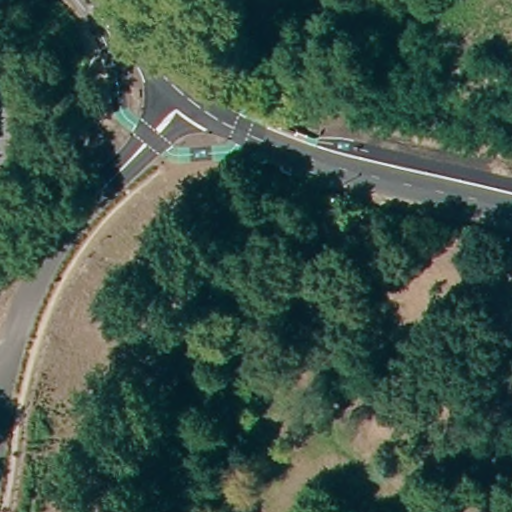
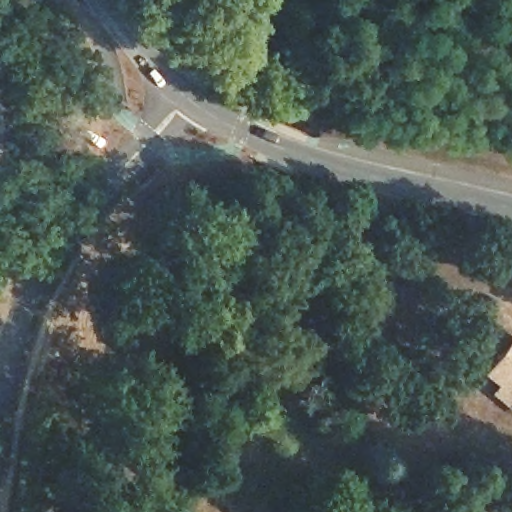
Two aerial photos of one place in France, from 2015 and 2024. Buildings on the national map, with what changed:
new [(512,413),(488,393),(495,385),(482,374),(512,336),(512,413)]

